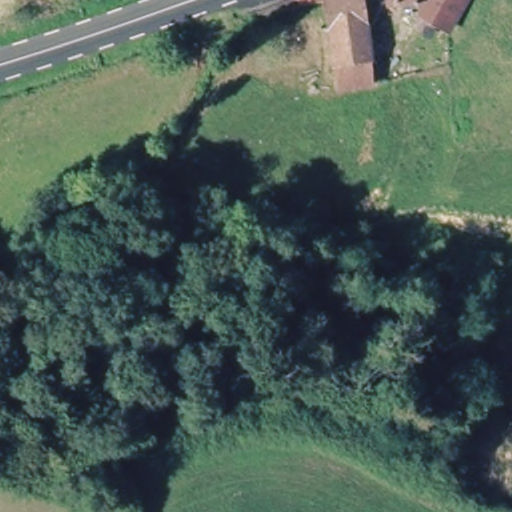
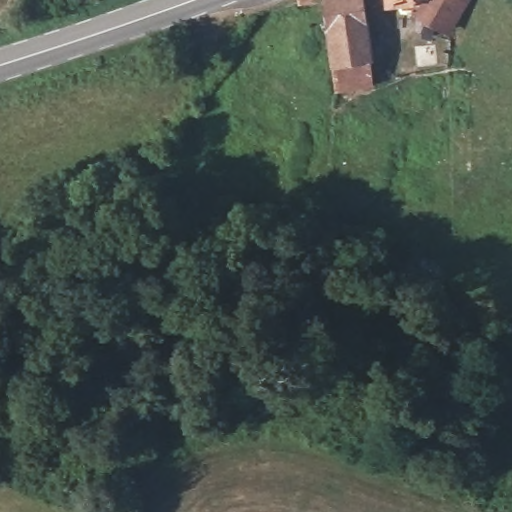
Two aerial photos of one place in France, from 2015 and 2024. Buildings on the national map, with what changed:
unchanged [(290,0),(283,1),(283,0),(290,0)]
unchanged [(320,0),(365,0),(375,56),(375,87),(339,91),(329,64),(320,0)]
unchanged [(384,0),(404,0),(385,5),(384,0)]
unchanged [(454,29),(443,20),(434,30),(418,18),(417,0),(463,0),(465,7),(454,29)]

